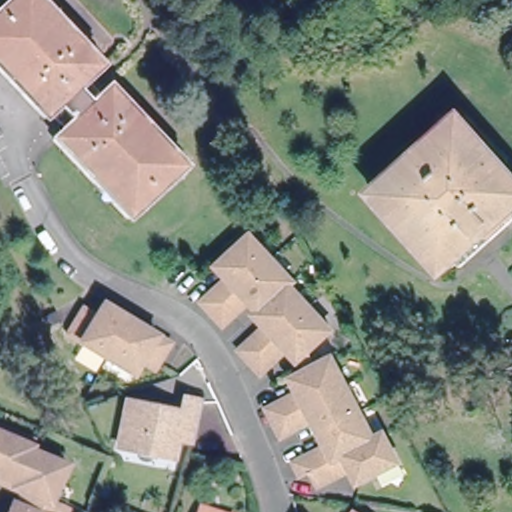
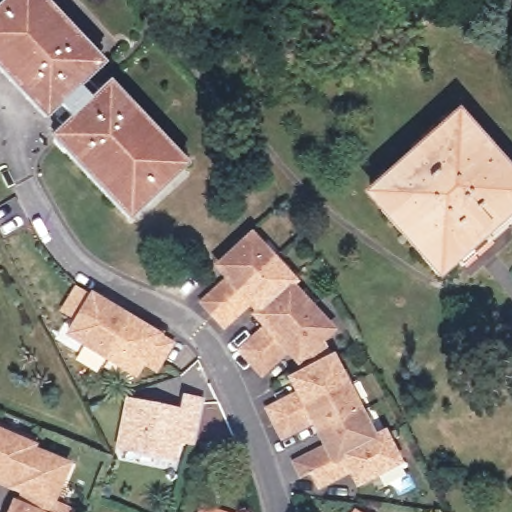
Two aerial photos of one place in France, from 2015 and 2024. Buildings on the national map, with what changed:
unchanged [(53,114),(0,52),(0,13),(13,0),(52,0),(98,51),(84,65),(98,81),(104,76),(182,165),(124,220),(45,125),(53,114)]
unchanged [(425,254),(374,192),(392,176),(397,180),(445,138),(442,133),(462,114),(511,174),(512,174),(512,219),(502,227),(497,222),(465,249),(470,255),(450,272),(446,269),(436,277),(420,257),(425,254)]
unchanged [(200,303),(224,280),(215,268),(247,237),(268,260),(210,314),(200,303)]
unchanged [(268,260),(290,283),(286,287),(256,313),(247,302),(219,328),(210,314),(268,260)]
unchanged [(286,287),(307,308),(247,364),(236,352),(262,328),(253,317),(256,313),(286,287)]
unchanged [(328,331),(296,361),(284,350),(258,375),(247,364),(307,308),(328,331)]
unchanged [(132,324),(110,363),(71,343),(86,316),(98,324),(106,310),(132,324)]
unchanged [(132,324),(173,346),(158,372),(145,365),(137,379),(110,363),(132,324)]
unchanged [(278,419),(272,405),(302,389),(295,376),(336,354),(350,382),(278,419)]
unchanged [(324,430),(317,416),(286,434),(278,419),(350,382),(364,409),(324,430)]
unchanged [(193,441),(175,436),(167,454),(121,438),(136,395),(182,411),(186,400),(204,404),(193,441)]
unchanged [(316,468),(306,473),(299,459),(331,442),(324,430),(364,409),(375,404),(388,429),(316,468)]
unchanged [(73,512),(12,512),(14,507),(19,509),(27,487),(0,476),(0,425),(8,428),(7,432),(26,440),(25,443),(66,460),(58,482),(71,487),(65,502),(76,506),(73,512)]
unchanged [(402,457),(361,477),(356,466),(323,484),(316,468),(388,429),(402,457)]
unchanged [(357,510),(360,512),(356,512),(357,510)]

